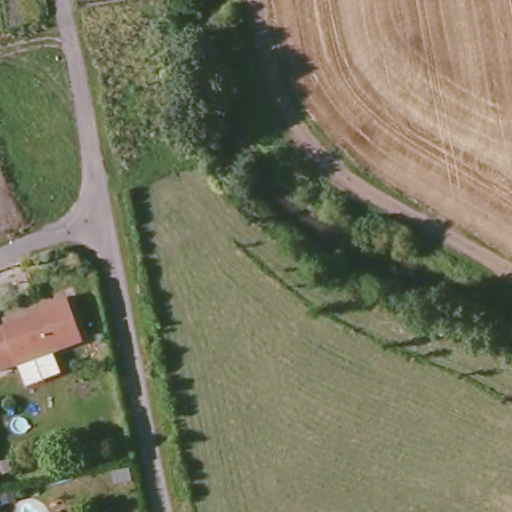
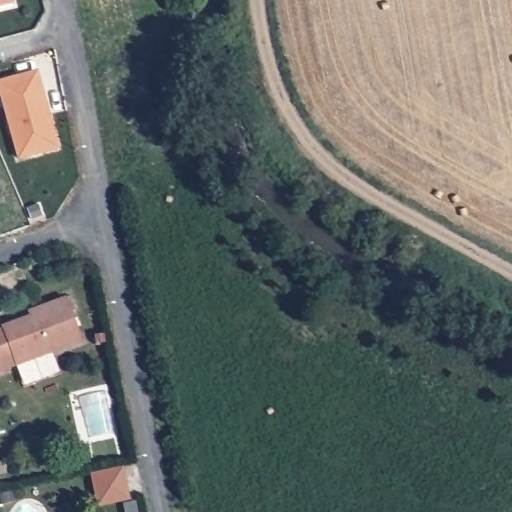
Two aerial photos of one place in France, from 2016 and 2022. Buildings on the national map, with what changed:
new [(17,158),(0,93),(0,80),(37,70),(58,148),(17,158)]
unchanged [(10,327),(10,324),(37,314),(35,309),(42,306),(73,295),(90,338),(2,371),(0,367),(0,331),(10,327)]
new [(120,467),(127,499),(97,505),(90,473),(120,467)]

